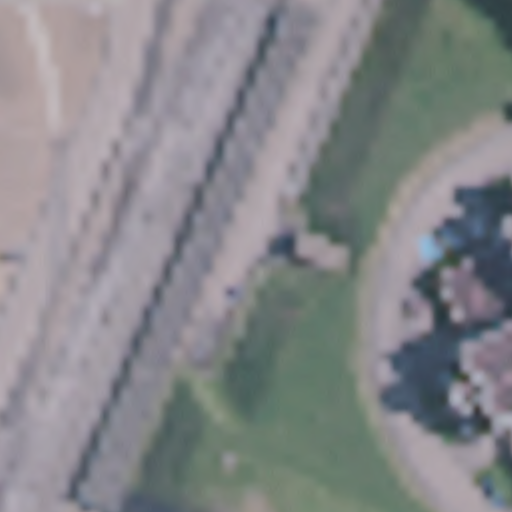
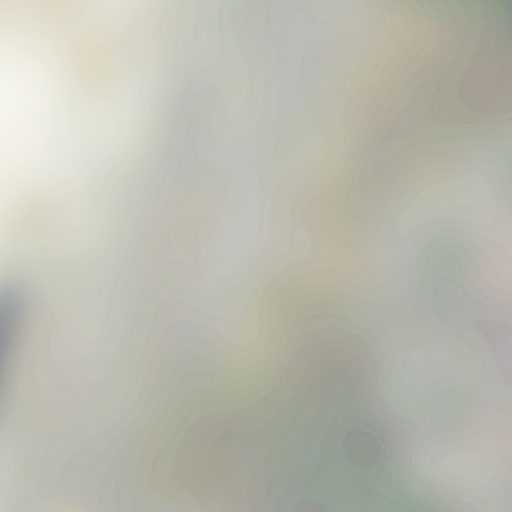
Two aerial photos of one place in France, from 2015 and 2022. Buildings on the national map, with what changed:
unchanged [(507,235),(512,233),(512,247),(507,235)]
unchanged [(512,273),(512,325),(468,345),(438,283),(502,252),(512,273)]
unchanged [(497,433),(488,413),(479,407),(470,418),(452,411),(460,389),(467,391),(472,381),(462,360),(512,337),(512,426),(497,433)]

